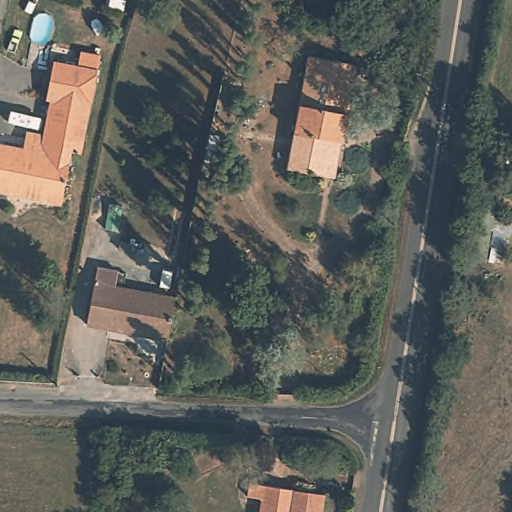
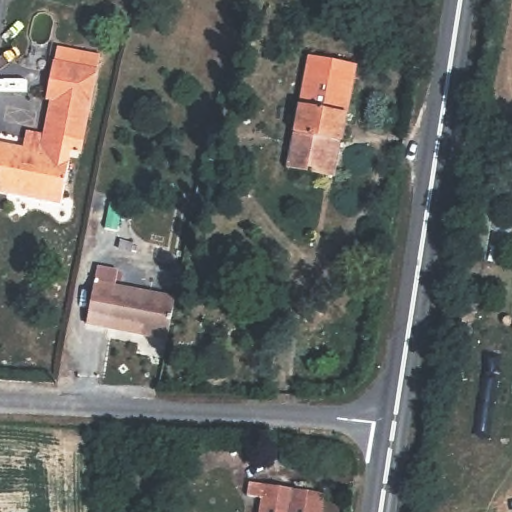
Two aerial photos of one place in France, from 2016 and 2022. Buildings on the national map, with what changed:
unchanged [(351,61),(339,170),(288,161),(307,54),(351,61)]
unchanged [(81,152),(72,150),(61,204),(0,193),(0,187),(0,144),(24,149),(25,132),(44,136),(51,102),(47,101),(54,62),(96,69),(81,152)]
unchanged [(86,318),(99,261),(121,266),(117,283),(177,296),(168,336),(86,318)]
unchanged [(266,498),(254,498),(254,486),(269,486),(297,493),(294,512),(264,512),(266,498)]
unchanged [(297,493),(326,496),(323,512),(294,512),(297,493)]

